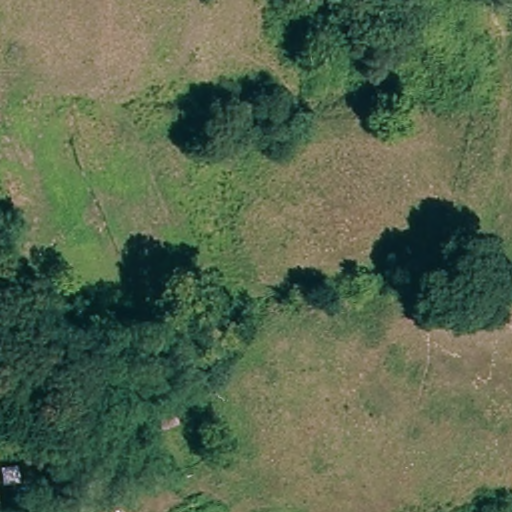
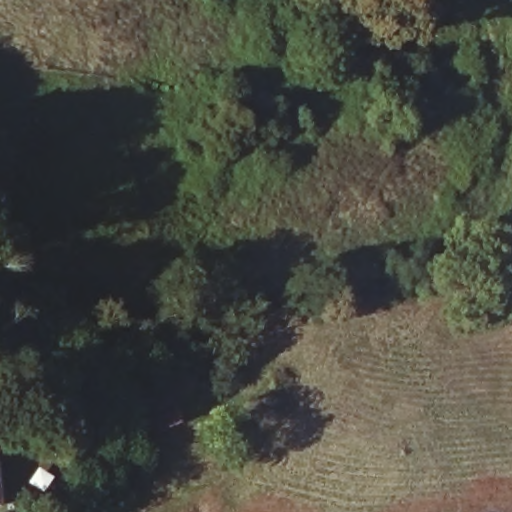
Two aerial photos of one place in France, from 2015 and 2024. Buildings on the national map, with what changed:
unchanged [(179,421),(156,431),(152,421),(175,410),(179,421)]

